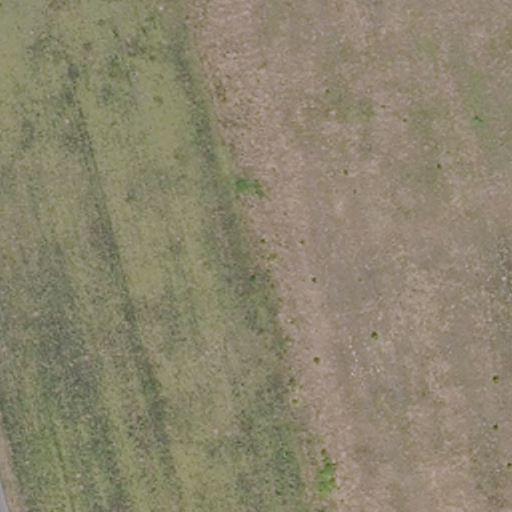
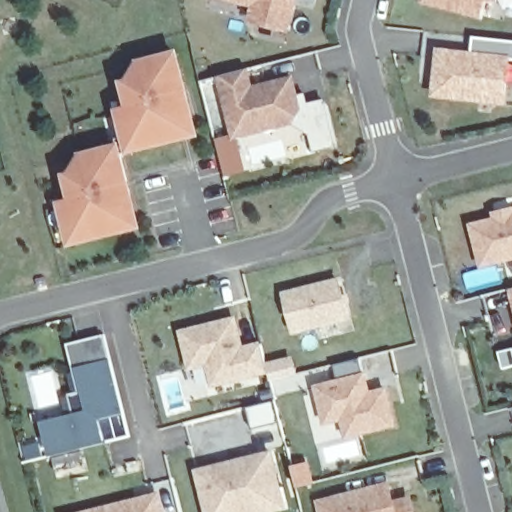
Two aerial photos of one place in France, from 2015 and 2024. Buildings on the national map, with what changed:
new [(248,22),(252,6),(230,0),(296,0),(289,31),(248,22)]
new [(422,1),(422,0),(485,0),(480,17),(422,1)]
new [(491,0),(495,0),(494,1),(491,0)]
new [(473,51),(474,36),(512,40),(512,59),(510,59),(505,105),(431,96),(436,48),(473,51)]
new [(201,135),(126,152),(115,108),(126,106),(121,80),(128,78),(139,58),(178,49),(201,135)]
new [(299,94),(306,92),(308,102),(325,99),(337,145),(314,151),(310,134),(293,122),(233,138),(218,78),(249,69),(253,85),(293,76),(299,94)]
new [(69,243),(58,202),(70,199),(63,175),(69,173),(80,152),(120,142),(141,227),(69,243)]
new [(480,267),(469,223),(492,216),(491,211),(512,206),(512,259),(480,267)]
new [(292,332),(283,291),(340,277),(349,317),(292,332)]
new [(510,287),(512,287),(512,294),(510,287)]
new [(243,346),(260,341),(264,362),(292,356),(297,372),(271,378),(269,372),(212,386),(206,364),(190,368),(180,330),(237,315),(243,346)]
new [(105,333),(123,412),(102,417),(107,439),(50,453),(41,422),(84,410),(67,343),(105,333)]
new [(340,418),(326,422),(316,386),(366,372),(371,391),(387,386),(396,424),(346,437),(340,418)]
new [(261,512),(208,512),(196,469),(271,450),(285,506),(261,512)]
new [(317,499),(389,481),(394,498),(411,495),(416,512),(320,512),(317,499)]
new [(165,512),(76,512),(159,491),(165,512)]

